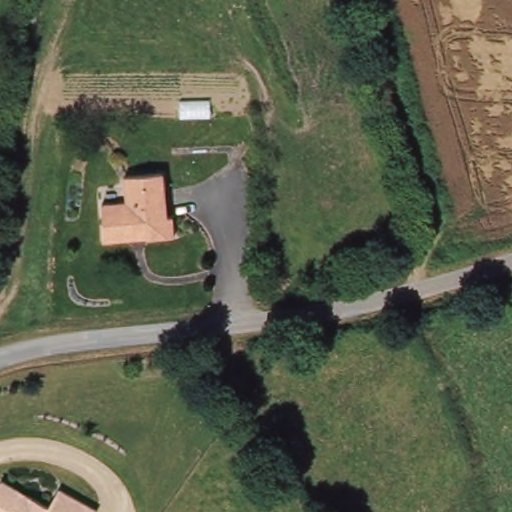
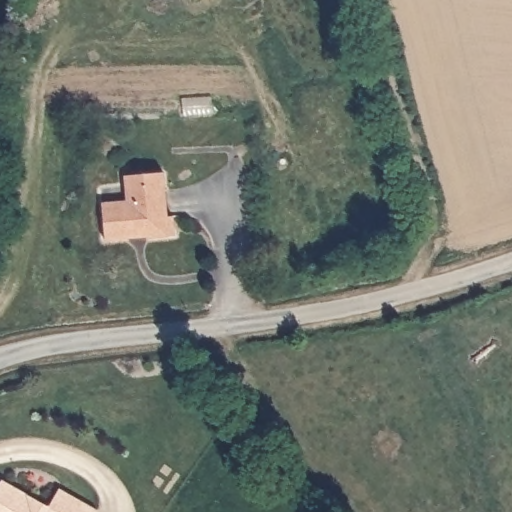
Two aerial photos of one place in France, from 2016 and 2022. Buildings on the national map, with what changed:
unchanged [(102,239),(97,202),(123,199),(121,174),(160,171),(165,213),(170,214),(171,236),(144,238),(142,233),(124,236),(102,239)]
unchanged [(47,512),(0,512),(0,485),(47,512)]
unchanged [(87,512),(48,512),(57,495),(87,512)]

